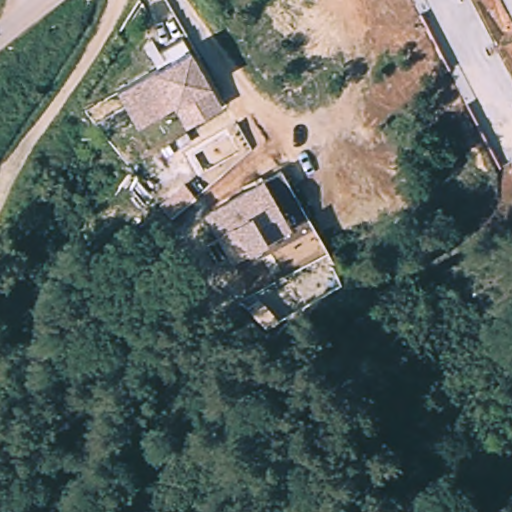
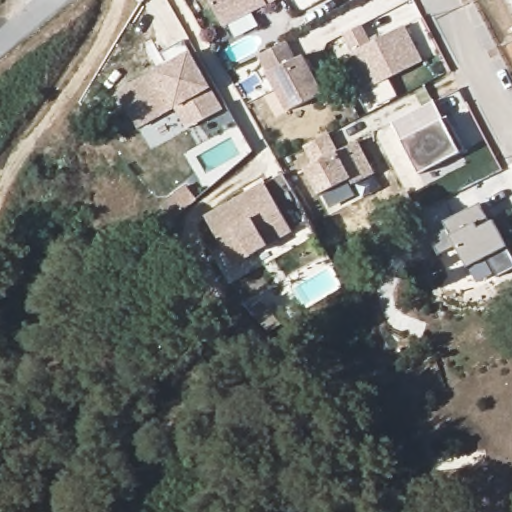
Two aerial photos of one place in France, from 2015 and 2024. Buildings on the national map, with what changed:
unchanged [(266,7),(263,2),(222,26),(209,0),(278,0),(266,7)]
new [(422,61),(365,90),(346,53),(351,51),(342,34),(362,24),(371,41),(404,25),(422,61)]
new [(297,57),(304,54),(323,90),(286,110),(268,72),(259,54),(287,40),(297,57)]
unchanged [(176,107),(137,127),(131,116),(118,92),(190,55),(220,111),(197,124),(186,130),(176,107)]
new [(442,117),(444,120),(449,116),(467,150),(460,152),(419,175),(401,140),(392,122),(434,101),(442,117)]
new [(339,150),(358,140),(375,172),(354,185),(350,177),(318,195),(304,167),(313,162),(304,146),(329,133),(339,150)]
demolished [(383,194),(328,209),(321,183),(373,167),(383,194)]
unchanged [(300,226),(220,267),(194,216),(273,175),(300,226)]
new [(472,222),(475,227),(492,220),(507,249),(469,267),(451,236),(472,222)]

